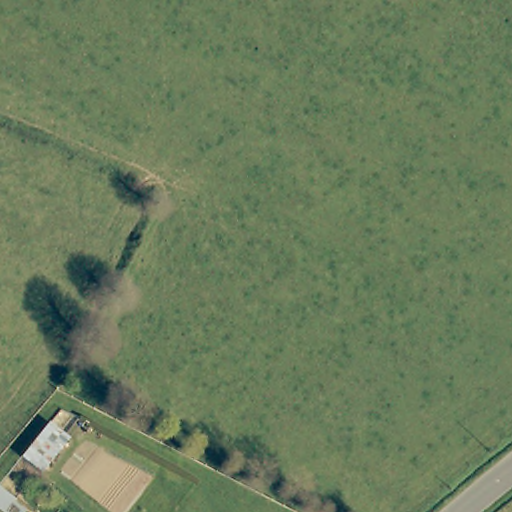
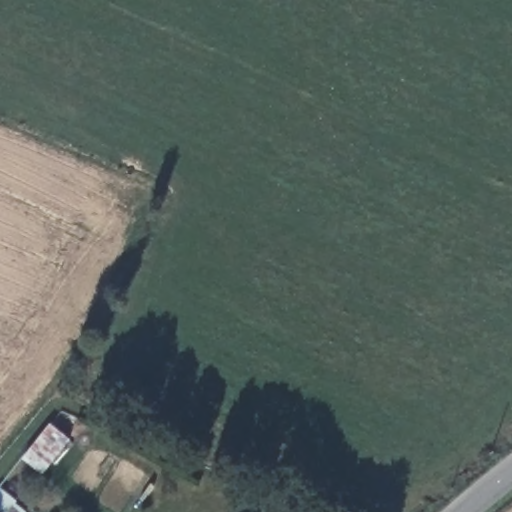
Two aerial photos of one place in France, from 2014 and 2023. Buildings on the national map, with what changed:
unchanged [(47,429),(65,445),(36,477),(18,462),(47,429)]
unchanged [(17,512),(0,512),(0,497),(17,512)]

